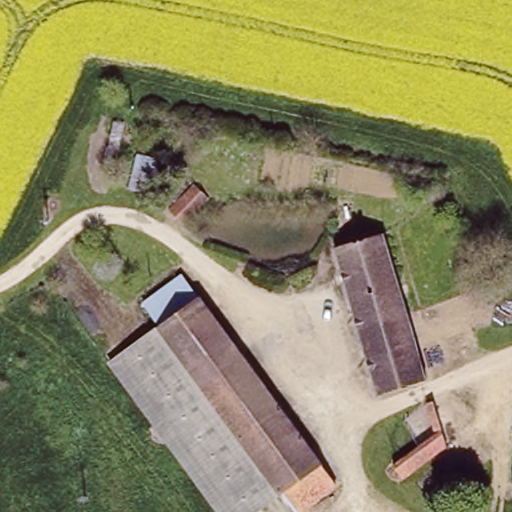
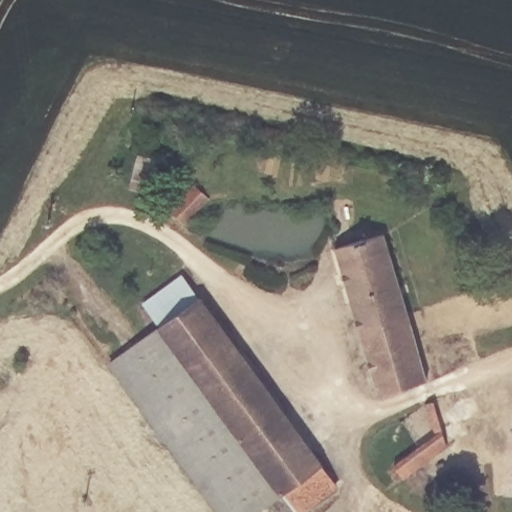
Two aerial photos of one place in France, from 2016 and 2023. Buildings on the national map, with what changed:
unchanged [(156,156),(152,189),(133,187),(137,153),(156,156)]
unchanged [(194,183),(205,194),(182,220),(170,208),(194,183)]
unchanged [(387,236),(430,381),(382,395),(340,251),(387,236)]
unchanged [(182,274),(198,296),(161,323),(146,301),(182,274)]
unchanged [(320,463),(282,491),(161,323),(198,296),(320,463)]
unchanged [(252,512),(217,512),(110,360),(161,323),(282,491),(252,512)]
unchanged [(439,435),(432,403),(436,401),(440,409),(450,444),(405,477),(397,465),(439,435)]
unchanged [(320,463),(335,483),(297,512),(282,491),(320,463)]

